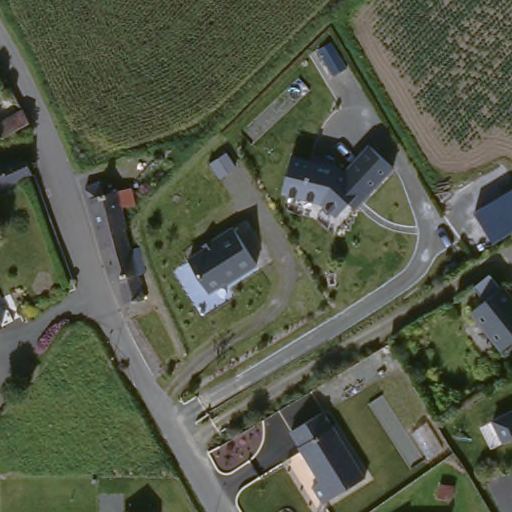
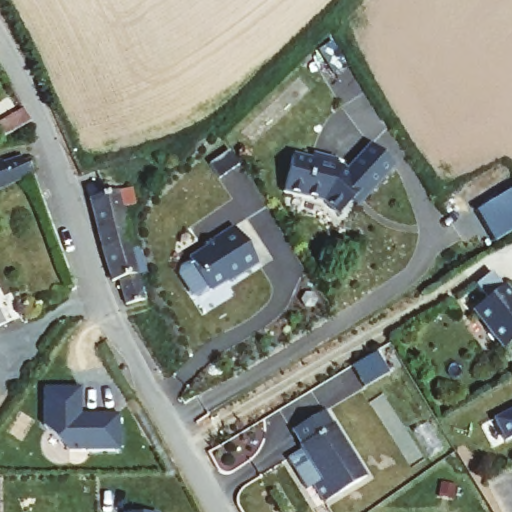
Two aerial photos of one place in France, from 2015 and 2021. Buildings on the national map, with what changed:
unchanged [(18,111),(24,124),(1,136),(0,134),(0,121),(18,111)]
unchanged [(282,197),(290,159),(309,163),(310,157),(334,162),(333,168),(340,169),(344,173),(368,146),(392,168),(362,201),(357,196),(337,218),(322,205),(282,197)]
unchanged [(24,156),(31,176),(0,188),(0,164),(24,156)]
unchanged [(473,213),(512,188),(512,233),(493,244),(473,213)]
unchanged [(118,284),(91,195),(105,189),(107,196),(116,196),(120,194),(133,190),(138,206),(124,209),(148,302),(133,306),(126,282),(118,284)]
unchanged [(214,241),(212,238),(229,226),(255,265),(230,283),(226,279),(209,290),(187,258),(214,241)]
unchanged [(496,289),(498,288),(512,306),(512,339),(495,352),(466,312),(480,302),(469,288),(485,275),(496,289)]
unchanged [(5,324),(0,326),(0,311),(5,324)]
new [(380,349),(392,369),(369,383),(357,363),(380,349)]
new [(80,389),(81,414),(118,415),(118,452),(65,452),(44,429),(42,389),(80,389)]
unchanged [(324,408),(369,473),(326,500),(316,482),(323,477),(301,443),(303,441),(293,426),(324,408)]
unchanged [(512,439),(503,444),(493,420),(512,410),(512,439)]

